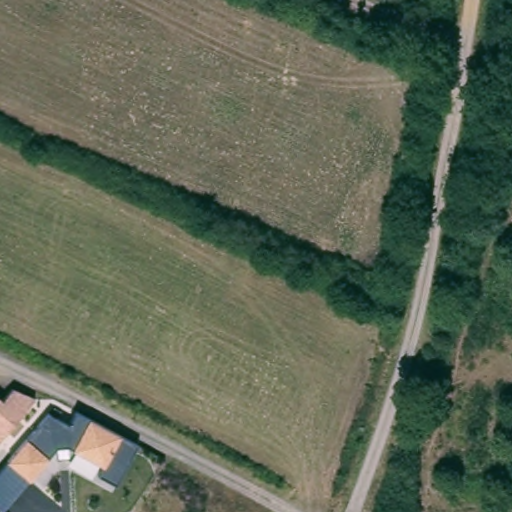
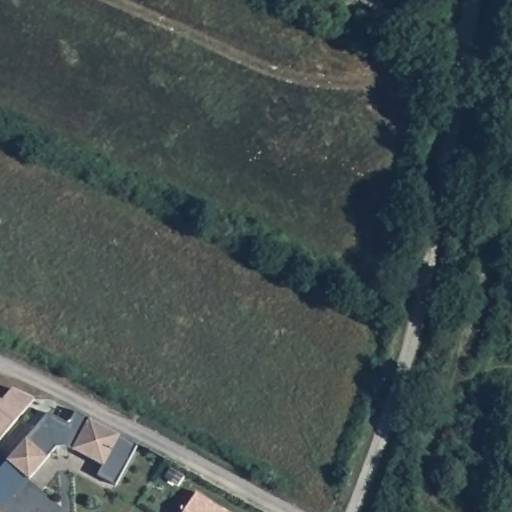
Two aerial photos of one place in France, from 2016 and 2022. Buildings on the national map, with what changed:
unchanged [(0,444),(0,403),(2,405),(12,394),(14,393),(35,403),(0,444)]
unchanged [(116,484),(98,475),(103,463),(71,446),(57,445),(0,511),(0,469),(48,412),(71,425),(77,412),(136,443),(116,484)]
new [(231,512),(184,512),(197,491),(231,512)]

